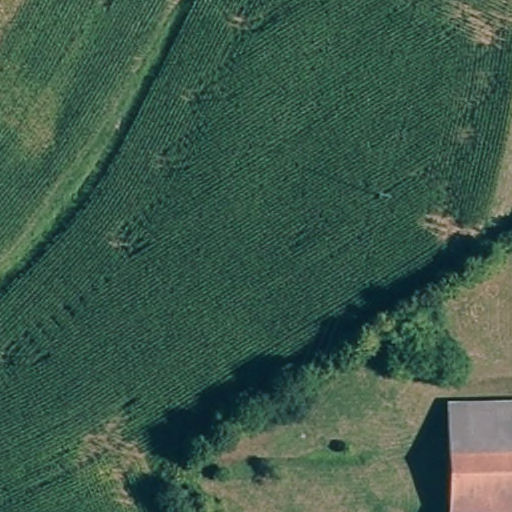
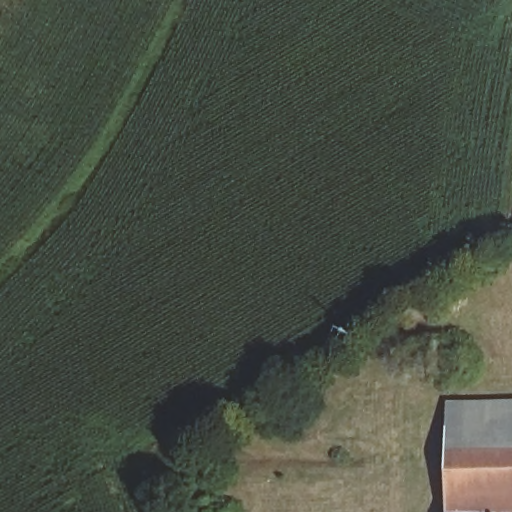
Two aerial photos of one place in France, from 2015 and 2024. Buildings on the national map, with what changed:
unchanged [(445,410),(512,410),(512,512),(444,512),(445,410)]

